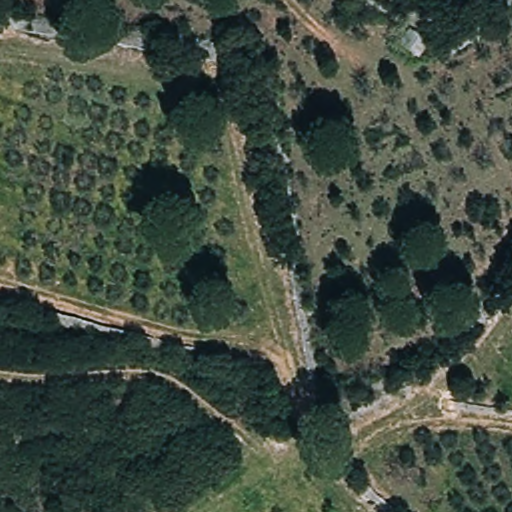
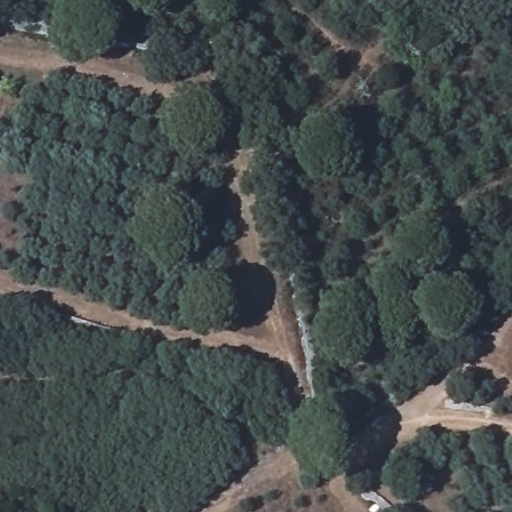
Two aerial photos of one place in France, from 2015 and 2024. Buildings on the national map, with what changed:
unchanged [(433,42),(417,59),(400,45),(415,28),(433,42)]

